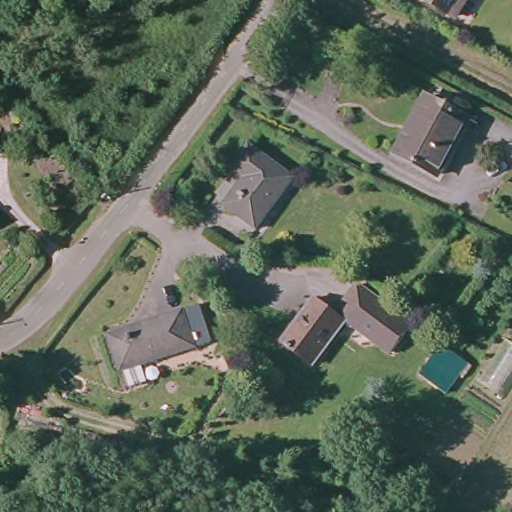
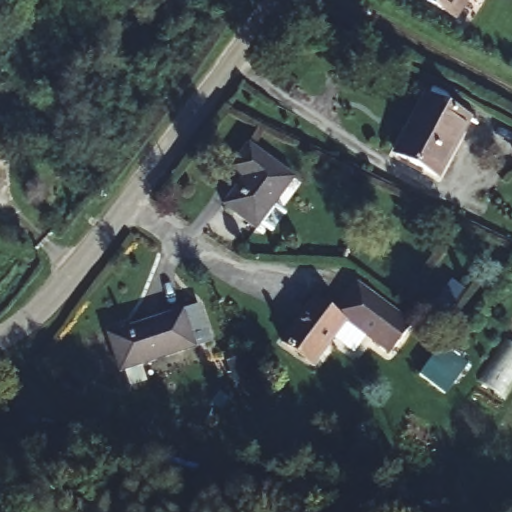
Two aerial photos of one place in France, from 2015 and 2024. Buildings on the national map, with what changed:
unchanged [(459,16),(428,0),(467,0),(459,16)]
unchanged [(397,149),(426,96),(465,118),(437,171),(397,149)]
unchanged [(293,173),(248,226),(221,204),(240,184),(226,169),(253,137),(293,173)]
unchanged [(273,346),(311,296),(332,312),(354,282),(409,322),(386,352),(341,320),(304,369),(273,346)]
unchanged [(131,363),(136,379),(114,385),(100,328),(189,307),(198,346),(131,363)]

